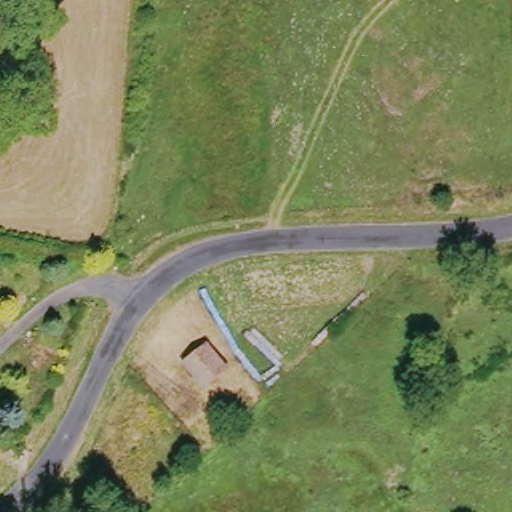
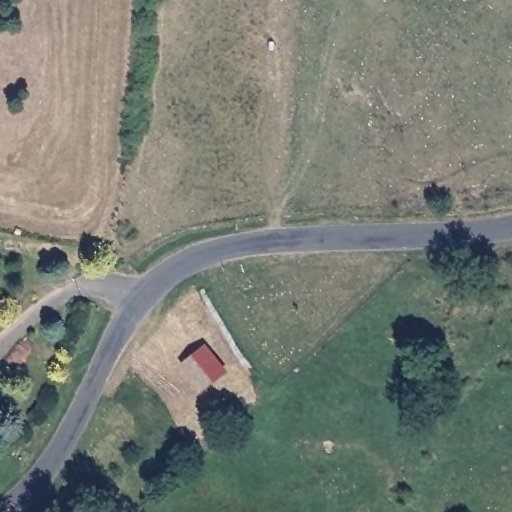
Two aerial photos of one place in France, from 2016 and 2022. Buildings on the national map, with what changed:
unchanged [(220,372),(195,388),(177,363),(200,347),(220,372)]

